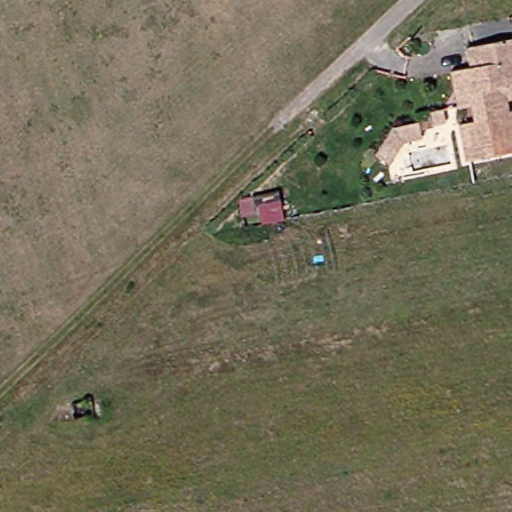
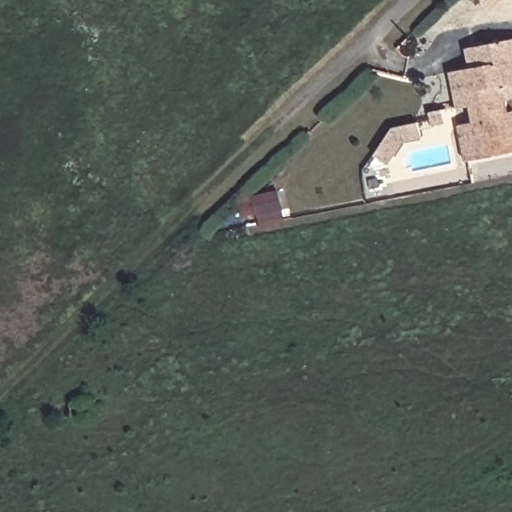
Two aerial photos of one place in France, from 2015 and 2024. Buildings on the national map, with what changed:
unchanged [(459,108),(451,73),(468,69),(471,69),(467,49),(512,40),(512,100),(507,101),(509,109),(510,113),(512,112),(512,152),(468,162),(467,160),(460,126),(476,123),(474,116),(472,105),(459,108)]
unchanged [(455,121),(442,123),(440,112),(453,110),(455,121)]
unchanged [(432,137),(414,141),(400,162),(387,153),(401,132),(405,126),(429,121),(430,126),(432,137)]
unchanged [(76,420),(74,404),(91,401),(93,417),(86,418),(76,420)]

